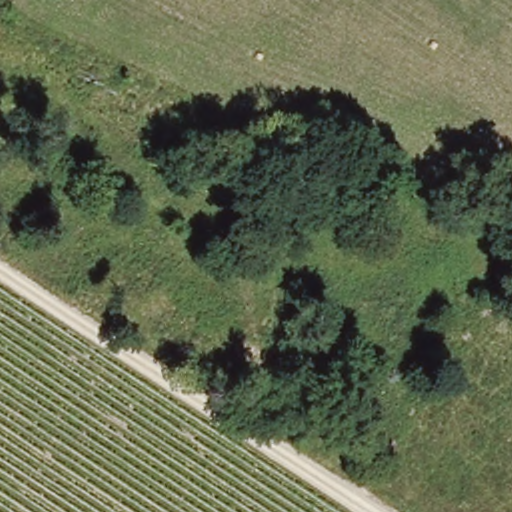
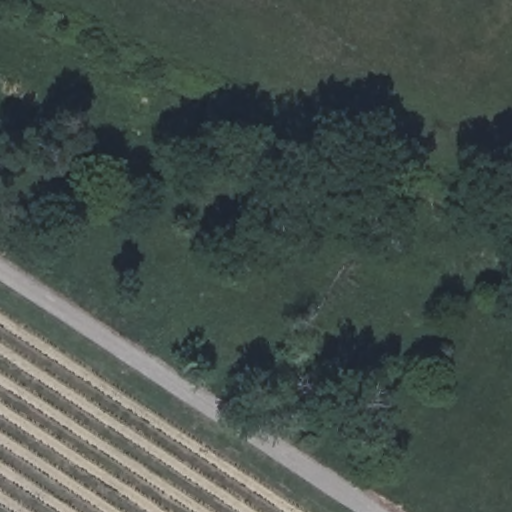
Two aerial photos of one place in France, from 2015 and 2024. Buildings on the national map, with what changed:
[]

